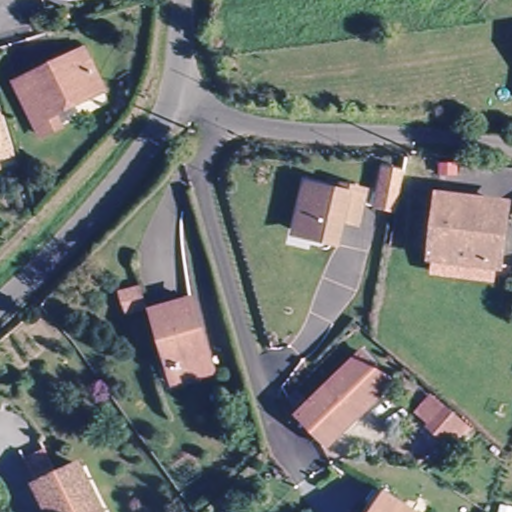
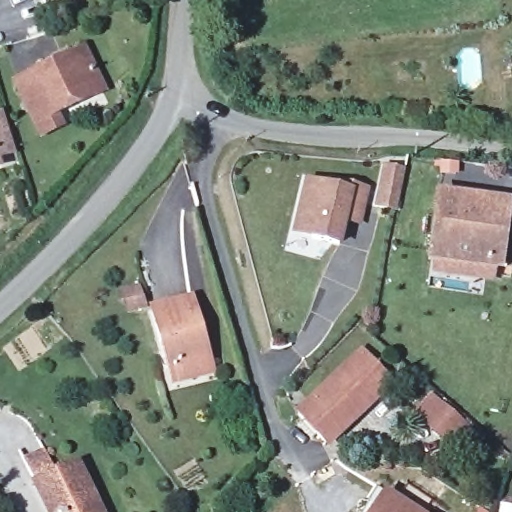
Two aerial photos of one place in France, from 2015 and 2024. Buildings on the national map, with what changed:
unchanged [(512,45),(512,66),(507,46),(512,45)]
unchanged [(102,90),(54,113),(60,125),(41,135),(16,84),(83,51),(102,90)]
unchanged [(9,145),(0,148),(0,115),(9,145)]
unchanged [(385,166),(407,172),(398,212),(375,208),(385,166)]
unchanged [(303,178),(339,185),(340,179),(369,187),(361,228),(346,225),(341,248),(291,236),(303,178)]
unchanged [(503,205),(497,266),(430,258),(438,197),(503,205)]
unchanged [(139,306),(121,311),(116,292),(133,287),(139,306)]
unchanged [(168,382),(164,368),(147,310),(185,299),(202,357),(206,371),(168,382)]
unchanged [(386,382),(321,445),(293,415),(357,353),(386,382)]
unchanged [(464,425),(446,446),(410,417),(428,395),(464,425)]
unchanged [(34,445),(46,469),(52,481),(72,471),(91,509),(92,512),(41,512),(13,455),(34,445)]
unchanged [(368,512),(361,508),(371,493),(401,512),(368,512)]

